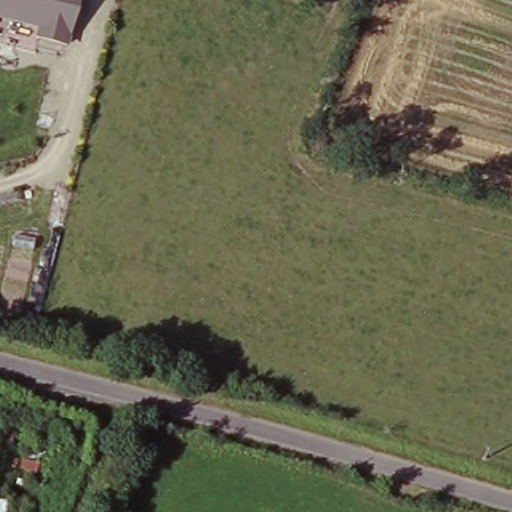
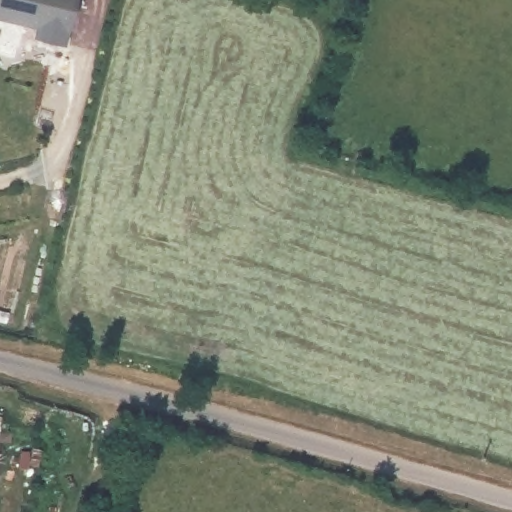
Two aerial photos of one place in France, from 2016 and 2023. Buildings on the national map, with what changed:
unchanged [(36,45),(38,29),(0,22),(0,0),(79,0),(67,51),(36,45)]

